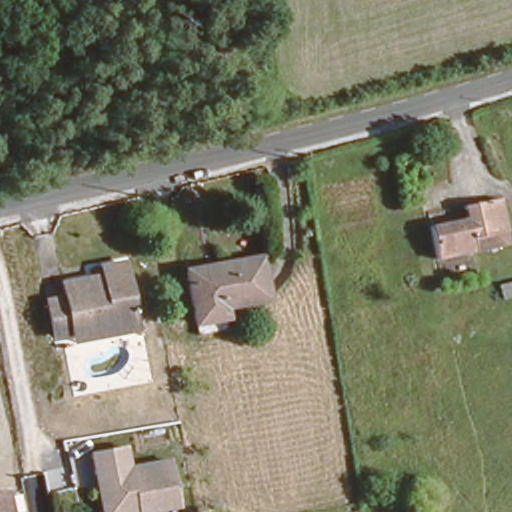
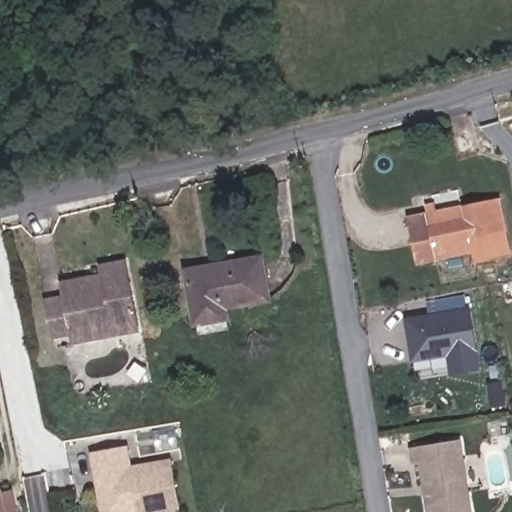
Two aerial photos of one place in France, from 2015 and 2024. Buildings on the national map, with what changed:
demolished [(427,224),(467,217),(464,200),(504,194),(511,230),(473,237),(476,251),(433,259),(427,224)]
new [(417,265),(407,217),(429,212),(431,225),(465,219),(462,206),(500,198),(511,245),(417,265)]
unchanged [(258,250),(266,295),(219,303),(221,313),(193,318),(185,263),(258,250)]
unchanged [(89,270),(105,268),(104,261),(134,257),(142,328),(73,337),(72,328),(55,330),(48,294),(67,291),(66,283),(90,280),(89,270)]
new [(450,376),(447,357),(411,363),(404,318),(470,307),(481,370),(450,376)]
new [(412,465),(409,447),(461,438),(473,512),(426,512),(418,465),(412,465)]
unchanged [(100,512),(88,451),(128,444),(132,465),(171,460),(181,510),(169,512),(100,512)]
unchanged [(10,512),(0,512),(0,489),(5,488),(10,512)]

